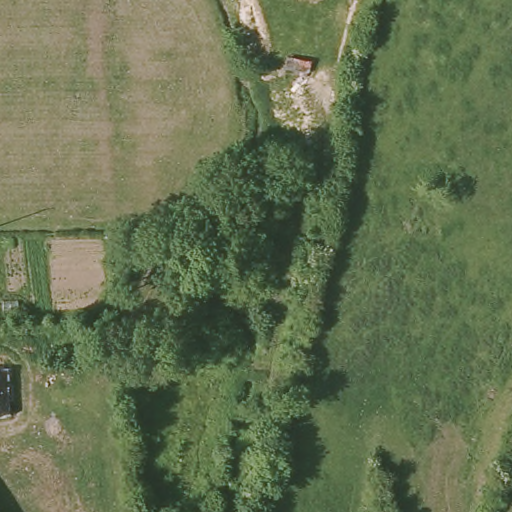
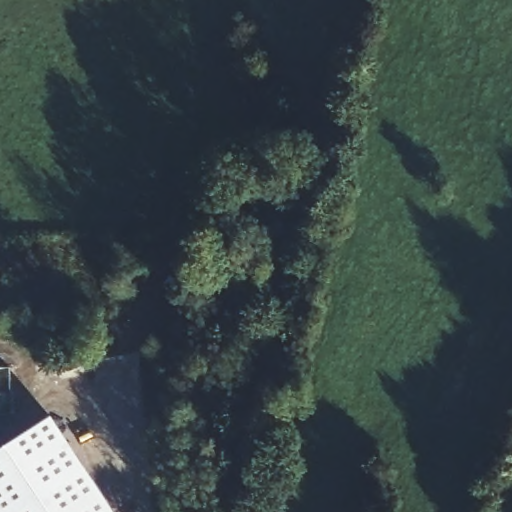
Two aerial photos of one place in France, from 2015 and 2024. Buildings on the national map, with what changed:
unchanged [(299,0),(312,0),(310,4),(299,0)]
new [(0,451),(52,414),(114,512),(0,512),(0,451)]

